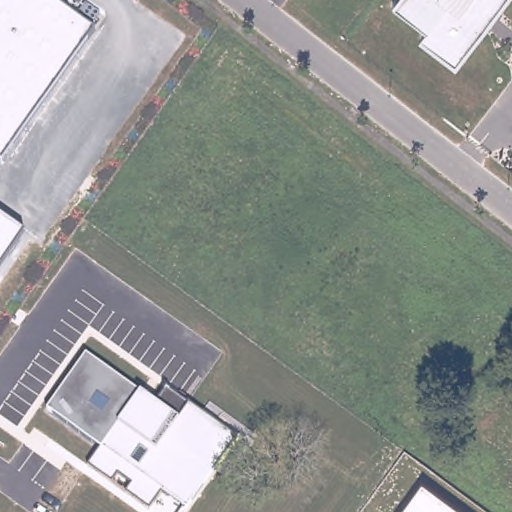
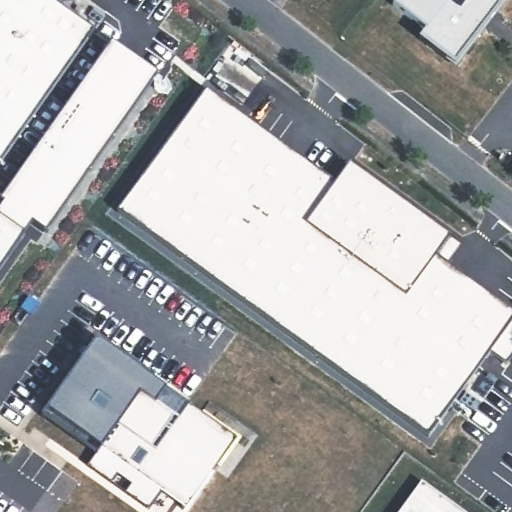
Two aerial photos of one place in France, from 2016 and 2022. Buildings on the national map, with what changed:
unchanged [(0,164),(0,0),(51,0),(92,30),(0,164)]
unchanged [(396,0),(506,0),(456,65),(420,39),(427,30),(392,5),(396,0)]
new [(447,241),(458,245),(443,264),(512,313),(512,321),(511,322),(512,323),(512,354),(505,365),(489,355),(427,438),(117,210),(206,90),(337,182),(351,162),(409,205),(407,210),(448,239),(447,241)]
unchanged [(0,268),(0,217),(24,235),(0,268)]
unchanged [(86,355),(141,392),(157,404),(167,388),(190,405),(237,438),(188,508),(164,491),(151,508),(90,466),(102,448),(47,410),(86,355)]
unchanged [(400,512),(422,482),(463,512),(400,512)]

